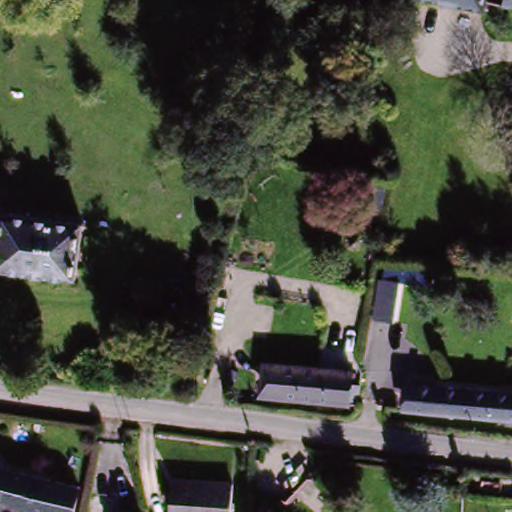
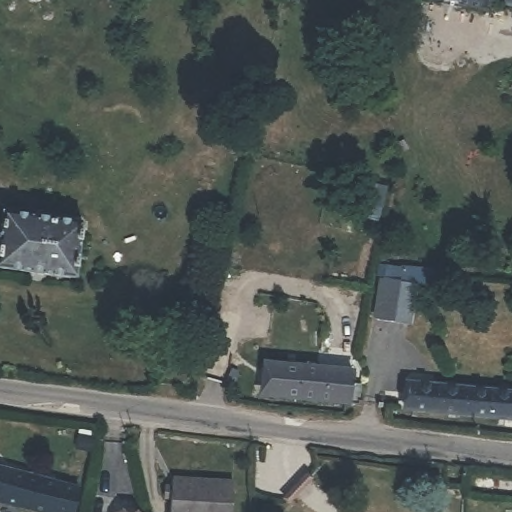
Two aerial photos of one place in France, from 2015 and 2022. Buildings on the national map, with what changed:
unchanged [(487,7),(454,0),(489,0),(487,7)]
unchanged [(8,215),(85,226),(78,273),(1,262),(8,215)]
unchanged [(263,391),(268,361),(353,375),(349,405),(319,400),(263,391)]
unchanged [(420,379),(512,393),(512,420),(417,405),(420,379)]
unchanged [(76,512),(51,512),(0,503),(0,472),(81,487),(76,512)]
unchanged [(228,482),(227,512),(172,512),(173,481),(228,482)]

